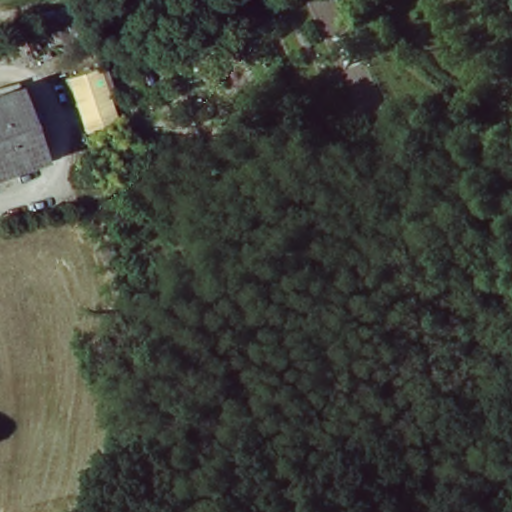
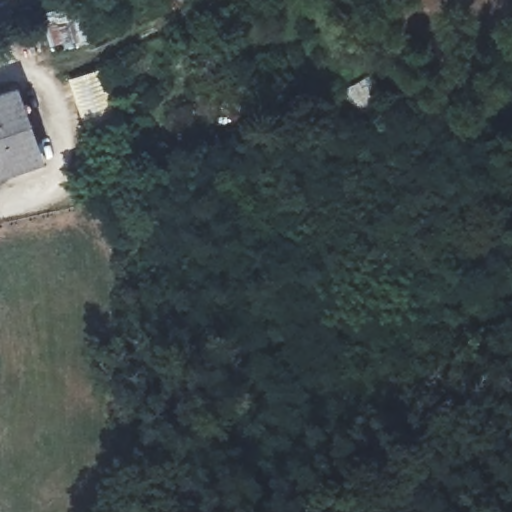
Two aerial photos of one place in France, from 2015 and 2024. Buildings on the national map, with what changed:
unchanged [(91,40),(78,43),(69,8),(83,4),(91,40)]
unchanged [(118,123),(93,128),(83,73),(108,68),(118,123)]
unchanged [(0,175),(0,90),(24,82),(49,158),(0,175)]

